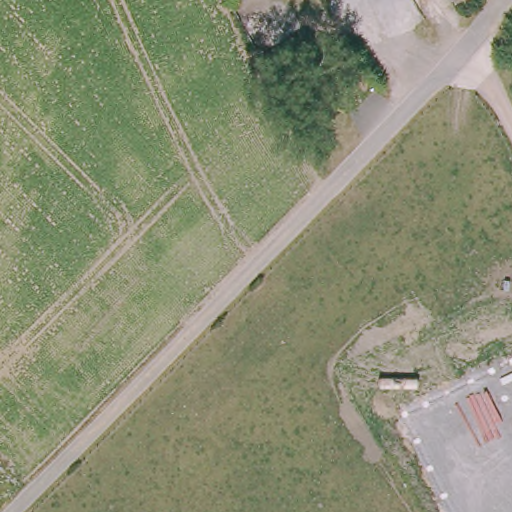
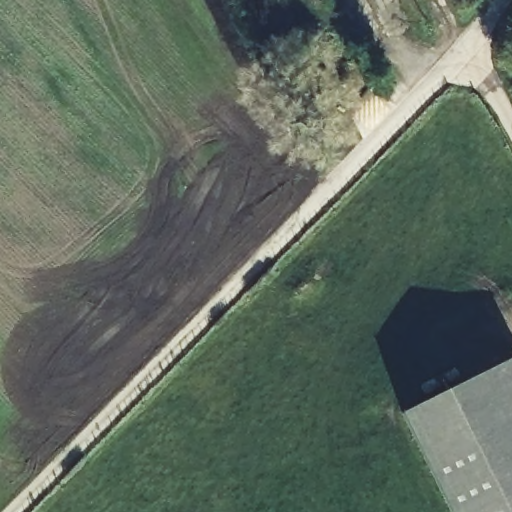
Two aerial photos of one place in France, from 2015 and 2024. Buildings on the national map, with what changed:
demolished [(455,0),(452,2),(451,0),(455,0)]
unchanged [(453,0),(470,0),(457,7),(453,0)]
new [(512,361),(512,512),(452,512),(404,416),(512,361)]

